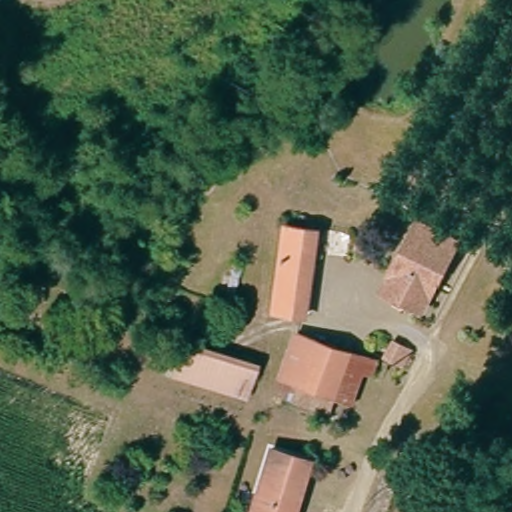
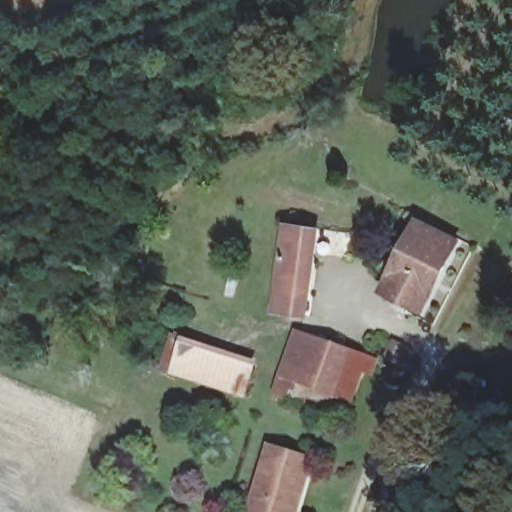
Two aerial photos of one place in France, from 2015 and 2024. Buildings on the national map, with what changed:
unchanged [(424,309),(421,317),(418,316),(384,300),(400,264),(409,245),(420,219),(438,226),(457,233),(437,279),(424,309)]
unchanged [(278,312),(279,300),(285,258),(289,232),(317,235),(314,260),(307,303),(305,316),(278,312)]
unchanged [(275,383),(278,377),(297,331),(320,340),(356,352),(369,356),(382,361),(377,376),(363,372),(354,396),(338,389),(333,401),(330,407),(275,383)]
unchanged [(247,397),(173,372),(182,346),(249,368),(255,371),(247,397)]
unchanged [(253,512),(269,463),(273,450),(287,454),(314,462),(298,512),(253,512)]

